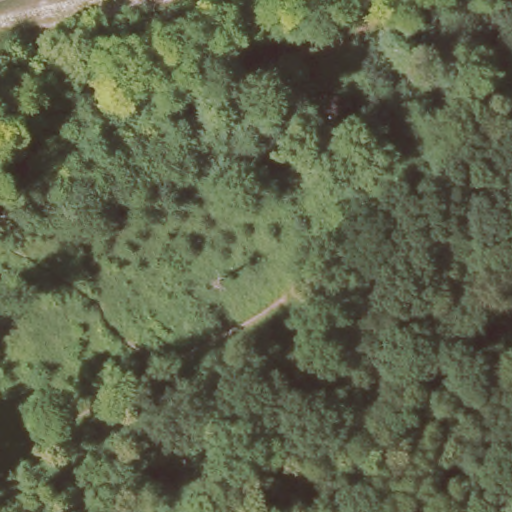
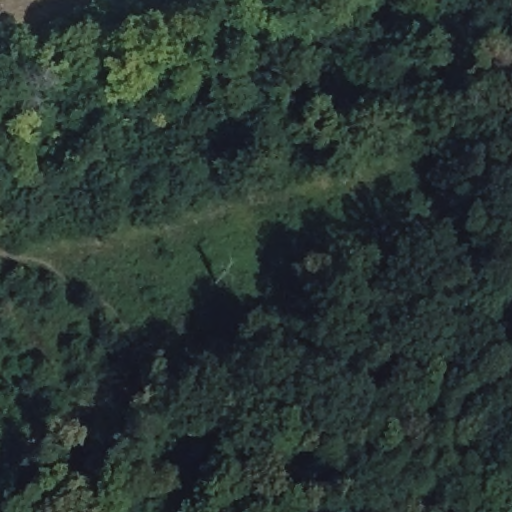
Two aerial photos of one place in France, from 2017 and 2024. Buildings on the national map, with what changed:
unchanged [(344,87),(352,114),(342,117),(337,102),(323,107),(325,124),(303,130),(297,98),(344,87)]

